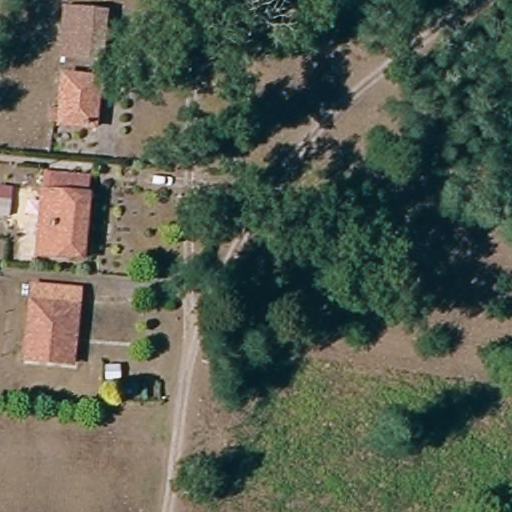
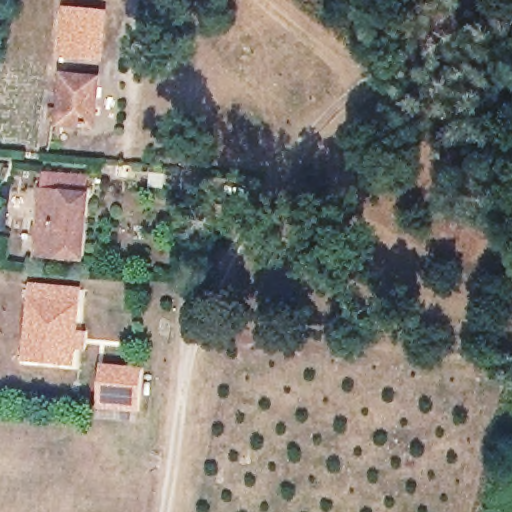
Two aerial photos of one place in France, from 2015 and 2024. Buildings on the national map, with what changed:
unchanged [(100,11),(96,60),(56,55),(60,7),(100,11)]
unchanged [(50,111),(61,112),(65,80),(100,82),(95,131),(60,128),(60,126),(49,125),(50,111)]
unchanged [(83,269),(37,265),(44,201),(45,185),(89,189),(87,206),(89,206),(83,269)]
unchanged [(20,363),(21,350),(25,304),(73,309),(69,355),(67,368),(20,363)]
new [(99,408),(102,365),(144,368),(139,412),(99,408)]

